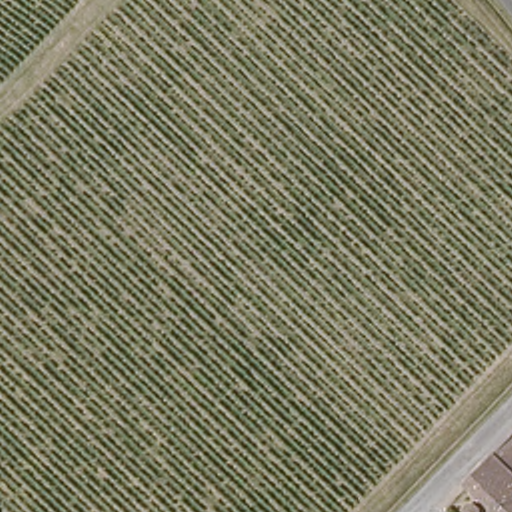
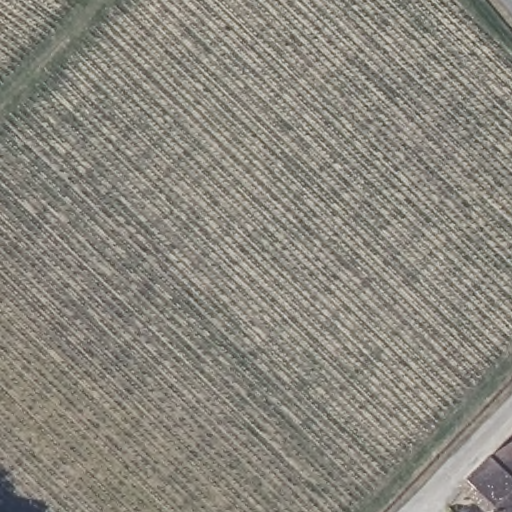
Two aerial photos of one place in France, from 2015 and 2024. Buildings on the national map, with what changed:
unchanged [(494,455),(512,435),(512,474),(494,455)]
unchanged [(492,512),(467,485),(494,455),(512,474),(512,512),(492,512)]

